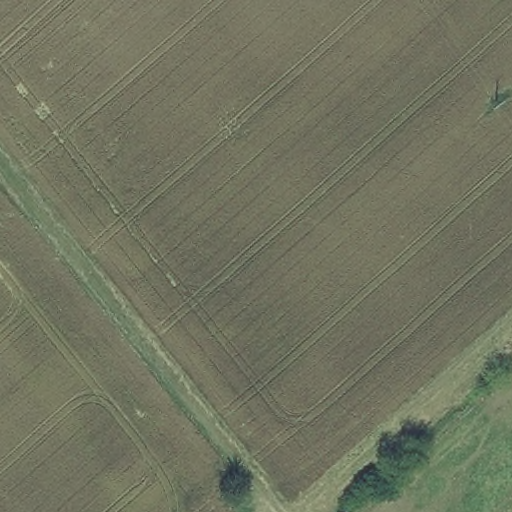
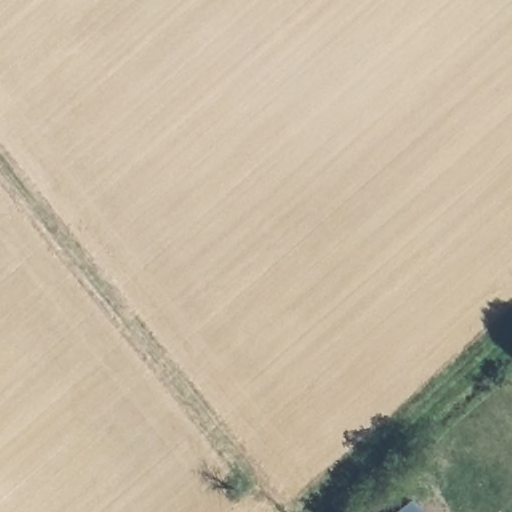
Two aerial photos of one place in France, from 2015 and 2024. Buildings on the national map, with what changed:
new [(411,499),(422,512),(393,512),(411,499)]

